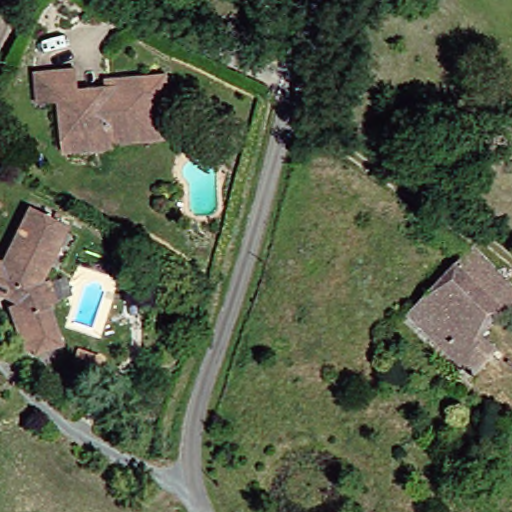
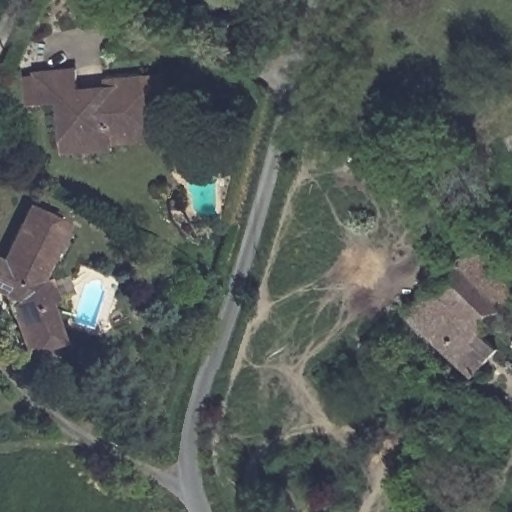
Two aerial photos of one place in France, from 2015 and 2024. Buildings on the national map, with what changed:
unchanged [(103,142),(54,146),(50,95),(28,97),(26,66),(67,62),(68,83),(97,80),(97,73),(110,72),(156,68),(159,99),(152,100),(154,125),(155,133),(103,138),(103,142)]
unchanged [(168,210),(167,201),(177,200),(177,210),(168,210)]
unchanged [(0,306),(5,304),(7,303),(0,299),(0,241),(17,205),(58,225),(30,283),(38,280),(46,300),(38,303),(51,344),(23,353),(20,348),(13,350),(0,314),(0,306)]
unchanged [(403,295),(412,286),(418,292),(464,245),(511,293),(467,341),(473,346),(453,366),(398,314),(410,301),(403,295)]

